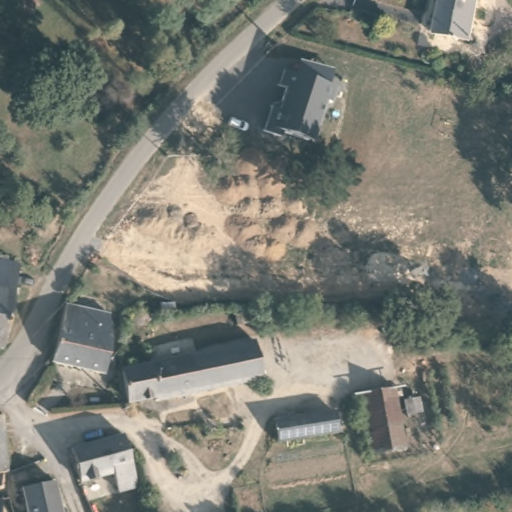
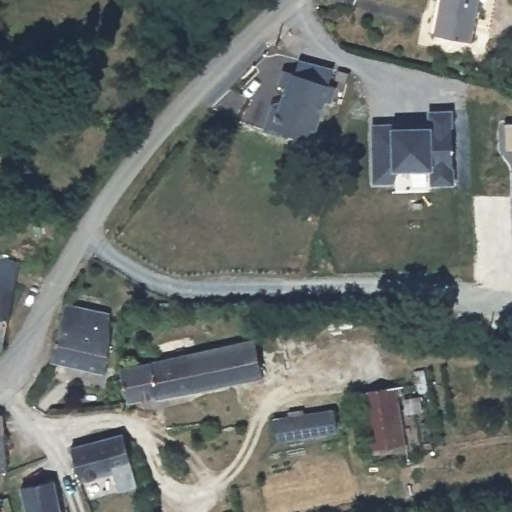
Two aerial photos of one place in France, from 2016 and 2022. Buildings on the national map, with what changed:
unchanged [(469,39),(433,29),(440,0),(478,0),(469,39)]
unchanged [(332,105),(323,102),(313,142),(284,134),(283,137),(263,130),(282,86),(278,83),(283,71),(298,74),(303,61),(334,71),(330,85),(338,87),(332,105)]
new [(453,184),(427,185),(427,171),(397,171),(397,185),(372,185),(370,122),(425,120),(426,110),(452,111),(453,184)]
unchanged [(506,150),(487,134),(507,125),(512,124),(512,150),(506,150)]
unchanged [(0,257),(21,261),(2,343),(0,342),(0,257)]
unchanged [(110,316),(114,334),(105,370),(55,356),(67,303),(110,316)]
unchanged [(127,400),(121,364),(256,333),(265,373),(127,400)]
unchanged [(363,393),(392,388),(401,448),(372,451),(363,393)]
unchanged [(277,420),(292,418),(291,413),(305,411),(306,417),(336,414),(339,431),(278,439),(277,420)]
unchanged [(215,423),(216,436),(202,437),(200,424),(215,423)]
unchanged [(0,473),(0,428),(5,472),(0,473)]
unchanged [(120,431),(128,464),(132,463),(137,484),(117,487),(112,469),(79,477),(72,443),(120,431)]
unchanged [(0,473),(1,491),(0,491),(0,473)]
unchanged [(28,512),(24,488),(53,482),(60,512),(28,512)]
unchanged [(1,512),(0,512),(0,502),(2,501),(1,512)]

